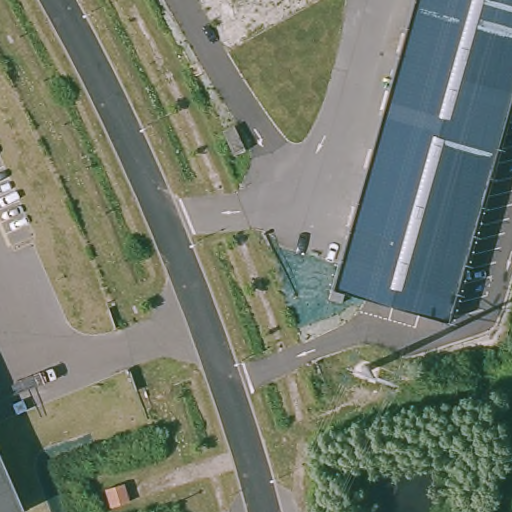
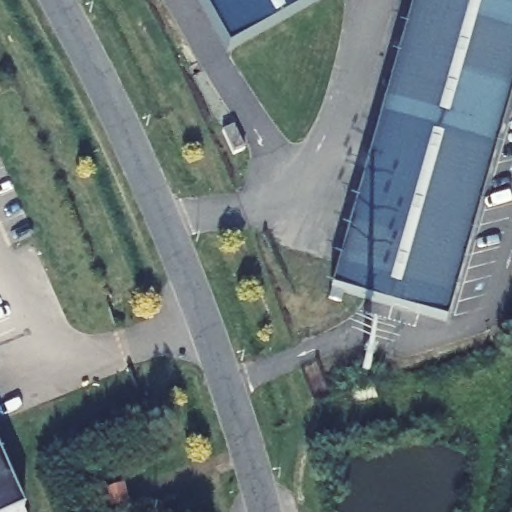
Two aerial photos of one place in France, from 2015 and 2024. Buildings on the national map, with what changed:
new [(203,0),(303,0),(227,42),(203,0)]
unchanged [(332,286),(414,0),(512,0),(512,91),(447,320),(332,286)]
unchanged [(17,512),(0,512),(0,457),(23,510),(17,512)]
unchanged [(111,508),(105,490),(123,485),(129,503),(111,508)]

